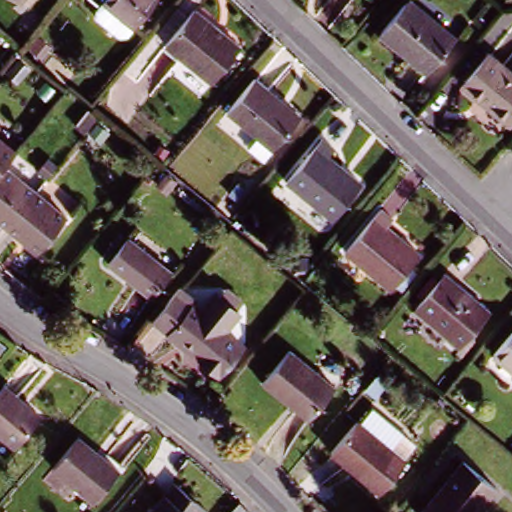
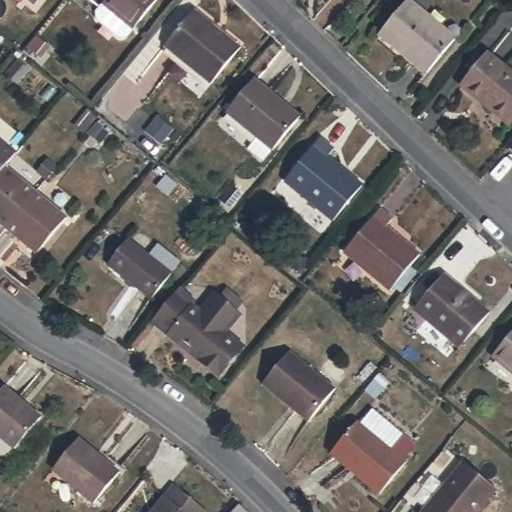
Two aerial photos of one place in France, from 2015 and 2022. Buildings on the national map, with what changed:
unchanged [(27,0),(29,0),(29,1),(27,0)]
unchanged [(104,0),(112,0),(109,5),(104,0)]
unchanged [(107,17),(107,10),(115,0),(166,0),(145,25),(137,35),(130,35),(107,17)]
unchanged [(380,36),(408,2),(457,43),(428,76),(412,63),(380,36)]
unchanged [(212,88),(180,62),(166,50),(195,14),(242,51),(212,88)]
unchanged [(489,56),(502,66),(512,75),(512,128),(511,129),(489,111),(462,89),(466,84),(489,56)]
unchanged [(270,84),(305,111),(268,157),(252,144),(262,132),(227,105),(255,72),(270,84)]
unchanged [(79,126),(72,121),(84,105),(92,111),(79,126)]
unchanged [(24,146),(11,161),(0,175),(0,127),(24,146)]
unchanged [(322,161),(340,176),(343,173),(357,185),(327,222),(282,184),(317,142),(329,151),(322,161)]
unchanged [(160,146),(169,151),(164,158),(156,152),(160,146)]
unchanged [(0,211),(0,175),(11,161),(44,189),(15,224),(0,211)]
unchanged [(162,172),(170,178),(162,187),(154,181),(162,172)]
unchanged [(74,213),(45,248),(15,224),(44,189),(74,213)]
unchanged [(402,288),(395,282),(392,287),(344,248),(377,208),(389,218),(382,226),(403,243),(406,240),(420,252),(410,263),(418,269),(402,288)]
unchanged [(152,297),(129,278),(107,260),(128,235),(172,271),(152,297)]
unchanged [(461,355),(456,351),(459,347),(412,309),(442,271),(455,281),(452,285),(475,302),(477,300),(490,310),(469,336),(472,339),(461,355)]
unchanged [(230,333),(247,347),(223,378),(155,321),(184,288),(195,297),(192,301),(206,313),(220,295),(225,299),(232,292),(246,304),(240,311),(245,315),(230,333)]
unchanged [(512,330),(512,370),(492,354),(512,330)]
unchanged [(262,387),(290,354),(335,392),(310,424),(262,387)]
unchanged [(9,444),(0,438),(0,388),(2,386),(39,417),(10,452),(5,448),(9,444)]
unchanged [(60,412),(72,396),(80,387),(89,394),(82,403),(68,419),(60,412)]
unchanged [(365,428),(377,412),(408,437),(395,452),(410,465),(382,498),(332,457),(360,424),(365,428)]
unchanged [(95,505),(53,471),(79,440),(121,473),(95,505)]
unchanged [(465,460),(500,489),(480,512),(424,512),(465,460)]
unchanged [(175,484),(207,510),(205,512),(152,512),(175,484)]
unchanged [(240,504),(249,512),(233,512),(240,504)]

